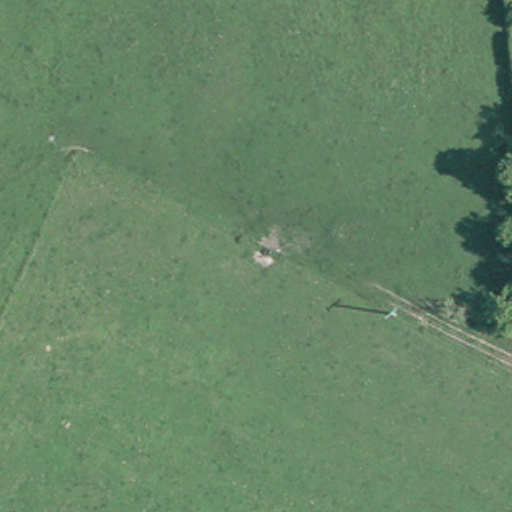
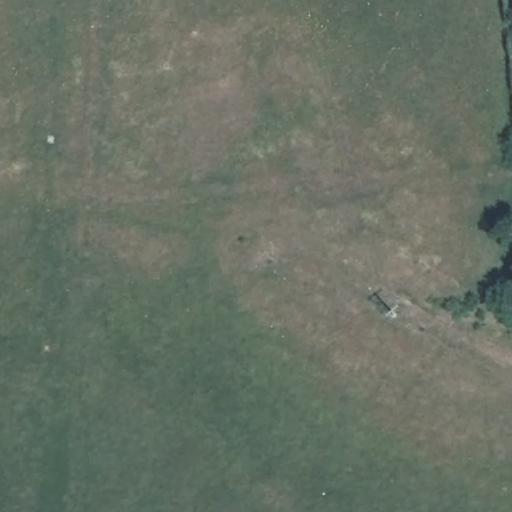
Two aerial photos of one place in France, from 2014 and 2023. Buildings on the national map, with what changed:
[]

